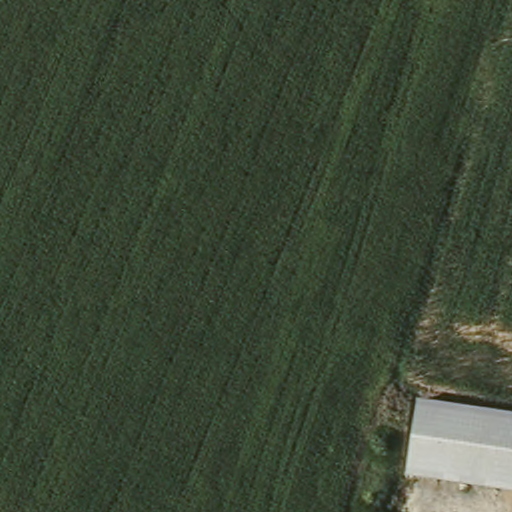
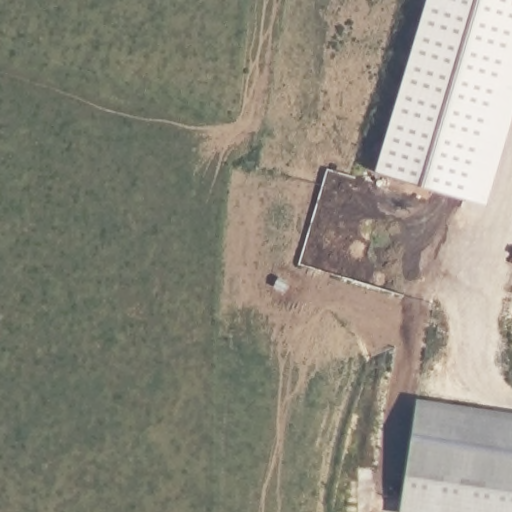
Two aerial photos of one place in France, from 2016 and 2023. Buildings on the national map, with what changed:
new [(375,182),(430,0),(512,0),(512,132),(487,217),(375,182)]
unchanged [(419,402),(512,416),(512,512),(400,512),(419,402)]

